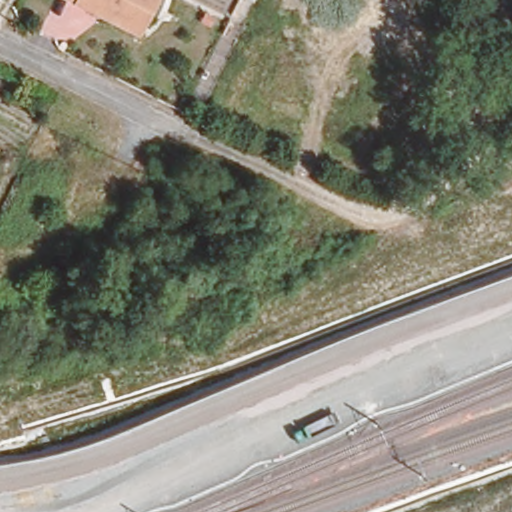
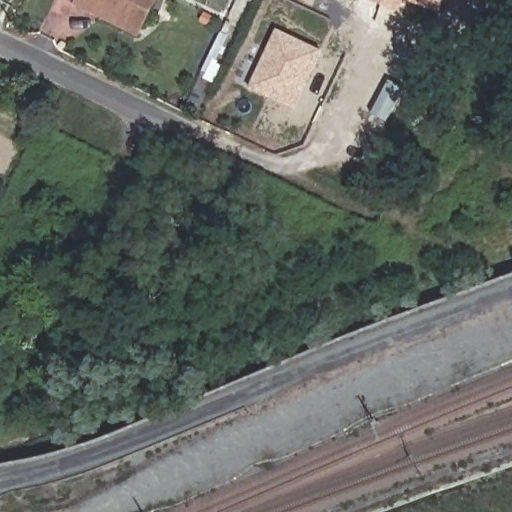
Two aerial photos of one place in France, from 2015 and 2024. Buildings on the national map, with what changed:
unchanged [(79,5),(67,0),(156,0),(142,29),(140,35),(97,15),(79,5)]
new [(404,0),(399,11),(372,0),(446,0),(441,14),(404,0)]
new [(295,110),(250,87),(276,28),(321,50),(295,110)]

